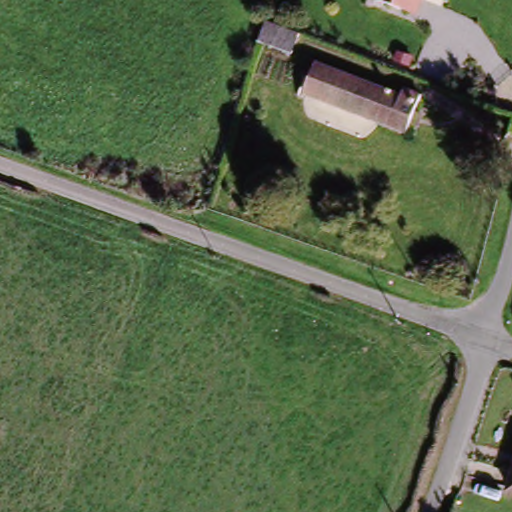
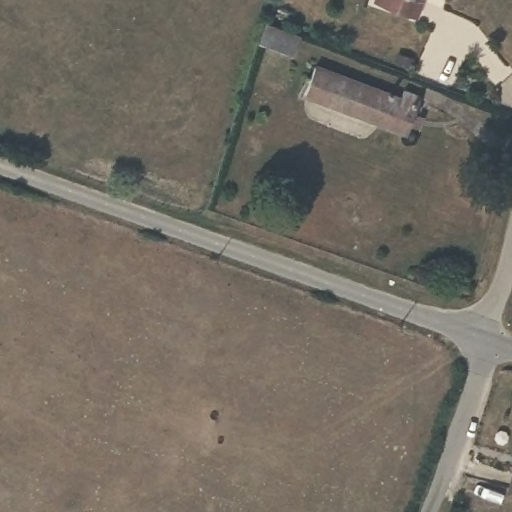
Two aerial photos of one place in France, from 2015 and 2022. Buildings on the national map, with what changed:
unchanged [(376,0),(426,0),(418,16),(376,0)]
unchanged [(260,23),(290,35),(282,56),(252,46),(260,23)]
unchanged [(413,98),(398,133),(381,126),(277,86),(287,63),(390,103),(395,91),(413,98)]

